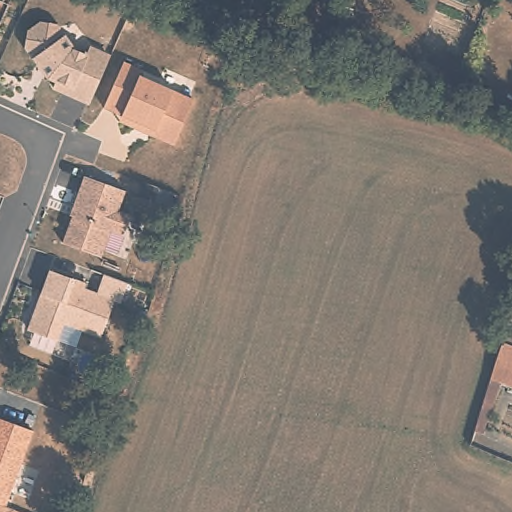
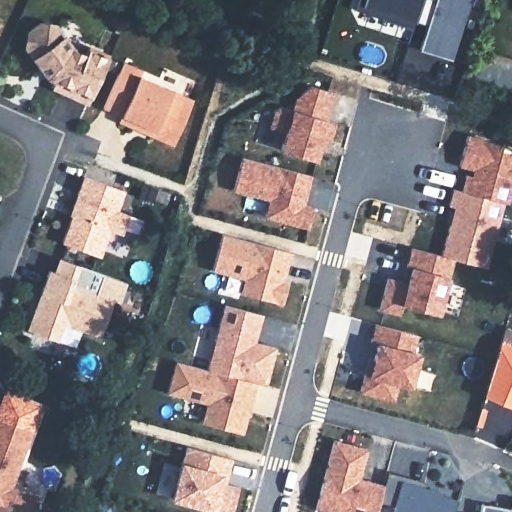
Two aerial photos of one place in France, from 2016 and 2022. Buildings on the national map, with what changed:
new [(365,6),(367,0),(434,0),(437,1),(437,0),(471,0),(452,61),(421,51),(429,27),(417,24),(365,6)]
unchanged [(26,47),(29,32),(40,24),(55,26),(72,49),(86,55),(89,48),(109,57),(89,103),(52,87),(56,80),(48,77),(42,70),(26,47)]
unchanged [(121,116),(103,108),(123,62),(142,70),(139,76),(192,100),(172,145),(151,136),(118,122),(121,116)]
new [(268,110),(275,107),(287,110),(290,99),(304,85),(328,91),(321,119),(331,121),(325,140),(316,138),(313,147),(315,148),(312,160),(276,150),(281,133),(264,129),(268,110)]
new [(478,137),(512,149),(512,183),(511,183),(506,202),(501,201),(458,190),(463,173),(473,176),(475,170),(456,165),(464,134),(478,137)]
new [(239,156),(308,175),(301,204),(310,206),(304,228),(261,216),(265,200),(229,190),(239,156)]
unchanged [(125,191),(117,210),(129,215),(122,235),(111,230),(101,256),(62,242),(72,216),(70,215),(72,206),(84,176),(125,191)]
new [(447,224),(450,225),(455,206),(452,205),(446,205),(450,188),(458,190),(501,201),(484,266),(451,258),(439,255),(447,224)]
new [(220,234),(288,252),(281,280),(286,281),(280,303),(238,292),(242,278),(210,270),(220,234)]
new [(385,277),(405,282),(408,267),(403,266),(409,247),(439,255),(451,258),(437,314),(400,305),(397,314),(377,308),(385,277)]
unchanged [(86,283),(84,288),(114,299),(101,337),(64,323),(57,340),(34,332),(30,324),(36,308),(41,294),(49,270),(86,283)]
new [(262,315),(257,332),(254,341),(275,347),(265,385),(255,382),(206,369),(224,304),(262,315)]
new [(363,374),(367,375),(376,343),(369,342),(374,324),(416,335),(412,352),(418,354),(410,388),(397,385),(392,401),(358,392),(363,374)]
unchanged [(512,387),(488,377),(504,328),(512,331),(512,387)]
new [(241,433),(200,422),(205,403),(166,392),(174,360),(206,369),(255,382),(251,399),(248,406),(241,433)]
unchanged [(33,430),(5,506),(0,504),(0,418),(33,430)]
new [(377,512),(327,512),(316,509),(334,440),(368,450),(360,479),(384,485),(387,473),(426,483),(424,490),(443,495),(443,498),(457,502),(455,512),(392,512),(394,506),(380,502),(377,512)]
new [(225,477),(222,484),(237,488),(230,512),(220,512),(170,498),(184,447),(230,459),(225,477)]
unchanged [(14,510),(13,512),(0,512),(0,504),(5,506),(14,510)]
new [(512,511),(512,512),(481,512),(482,506),(512,511)]

